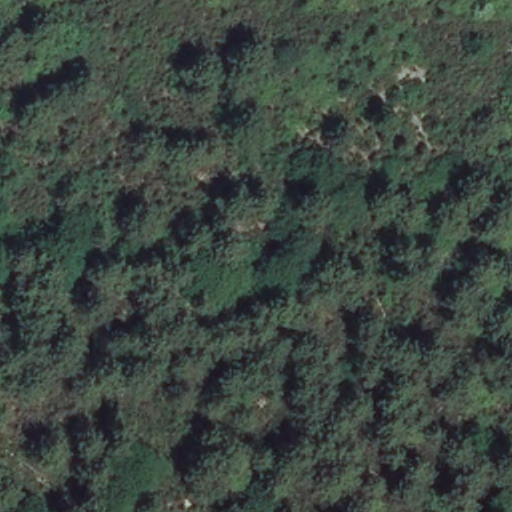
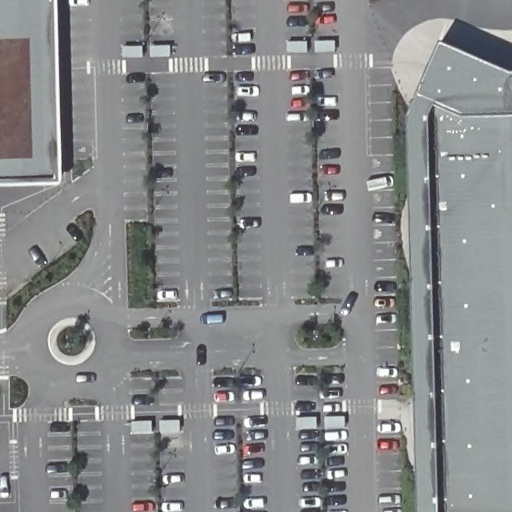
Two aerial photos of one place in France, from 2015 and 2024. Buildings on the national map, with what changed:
new [(60,179),(0,181),(0,0),(55,0),(60,179)]
new [(427,120),(411,113),(442,40),(512,69),(512,512),(435,512),(423,131),(427,120)]
new [(411,113),(427,120),(423,131),(435,512),(420,512),(410,115),(411,113)]

